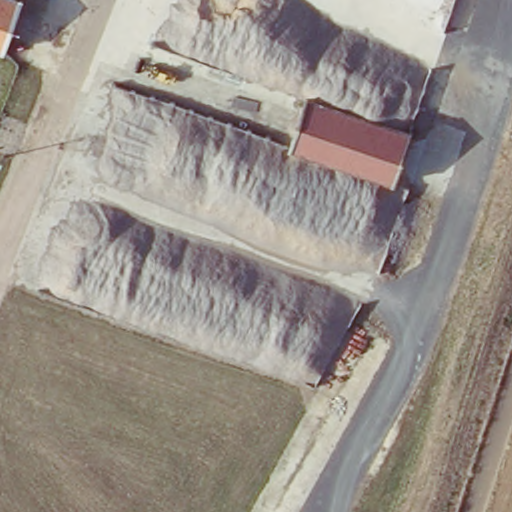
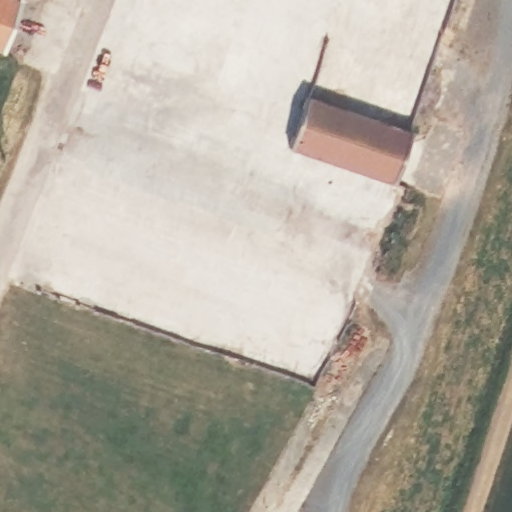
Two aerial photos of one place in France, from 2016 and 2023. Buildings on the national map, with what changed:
unchanged [(8,48),(0,45),(0,0),(24,0),(8,48)]
unchanged [(308,97),(418,133),(402,182),(292,146),(308,97)]

